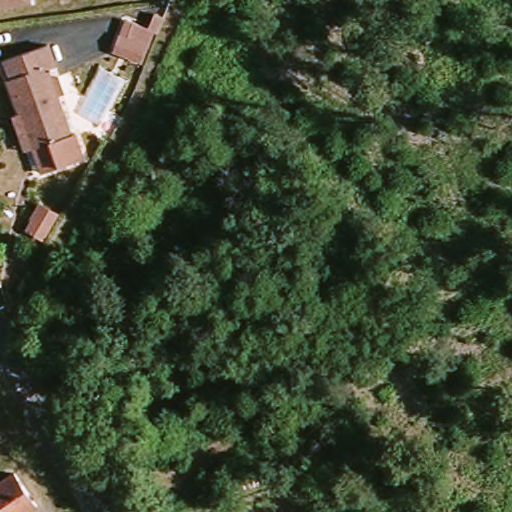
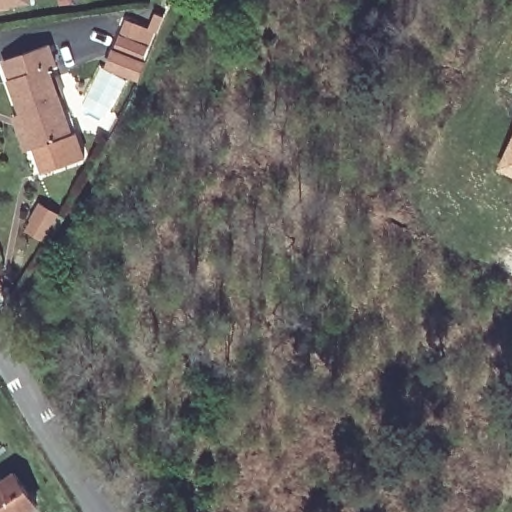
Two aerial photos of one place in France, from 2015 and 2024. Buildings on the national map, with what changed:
unchanged [(0,10),(0,0),(34,0),(35,4),(0,10)]
unchanged [(121,23),(144,31),(150,13),(160,18),(154,34),(143,66),(111,54),(121,23)]
unchanged [(37,146),(22,153),(10,119),(16,118),(4,84),(7,80),(2,64),(47,47),(55,67),(49,70),(83,159),(63,168),(47,174),(37,146)]
new [(512,137),(512,176),(497,170),(512,137)]
unchanged [(37,508),(30,512),(0,512),(0,484),(20,474),(37,508)]

